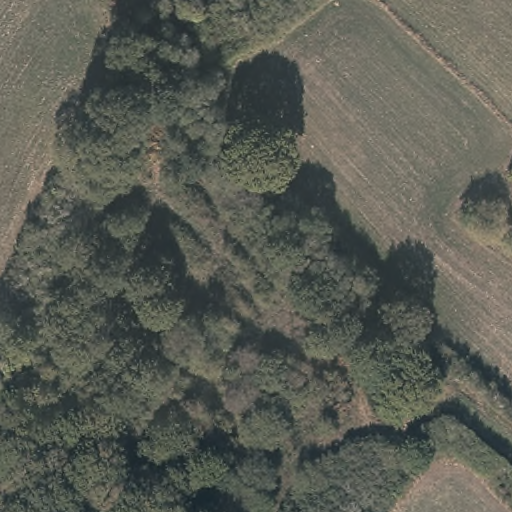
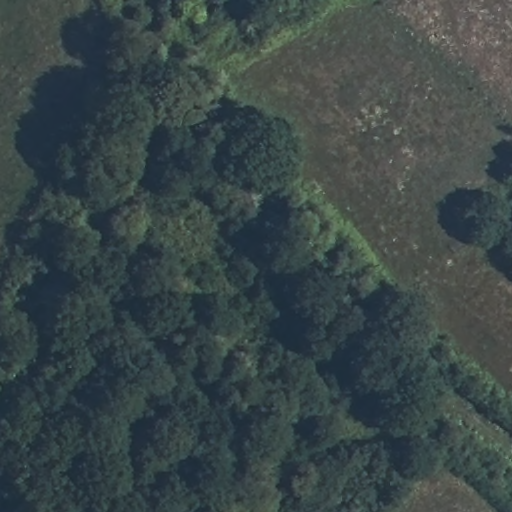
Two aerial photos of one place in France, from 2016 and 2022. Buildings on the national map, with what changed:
unchanged [(36,369),(50,372),(46,393),(35,389),(36,369)]
unchanged [(0,494),(0,482),(6,486),(0,494)]

